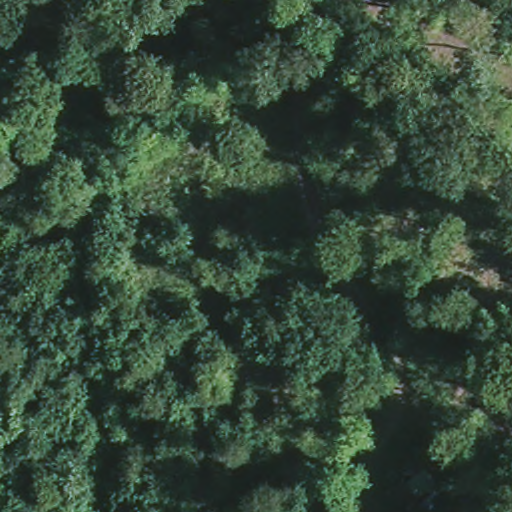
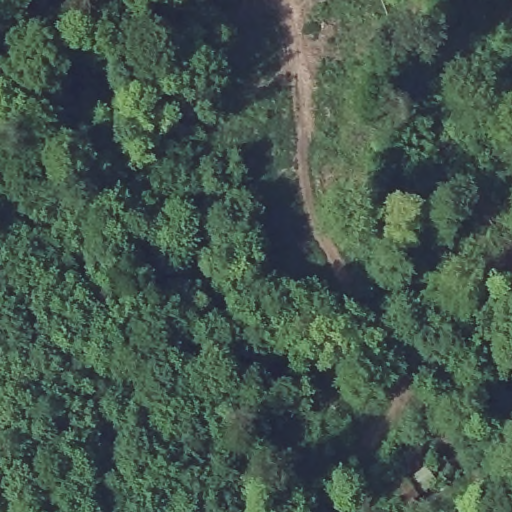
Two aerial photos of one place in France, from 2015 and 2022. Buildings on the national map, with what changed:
unchanged [(425,512),(401,468),(437,444),(457,490),(429,512),(425,512)]

